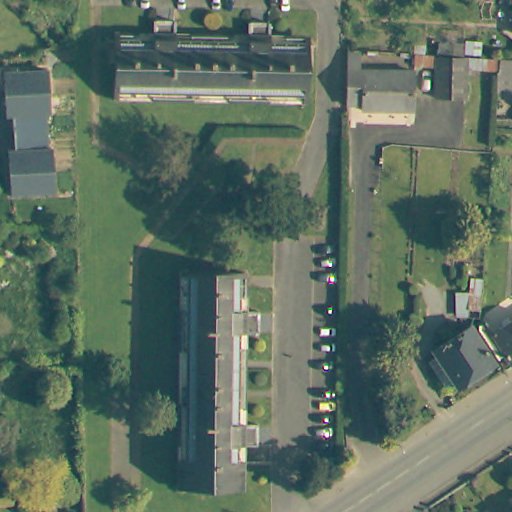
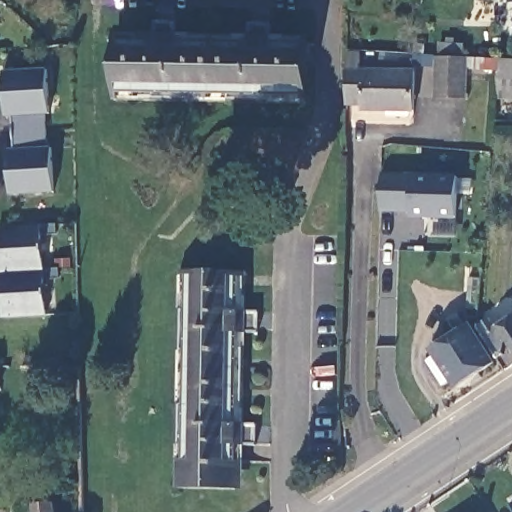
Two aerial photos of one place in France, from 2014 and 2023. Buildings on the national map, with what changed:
unchanged [(509,0),(512,0),(512,3),(509,3),(509,0)]
unchanged [(249,15),(271,15),(270,37),(314,37),(314,42),(307,42),(306,99),(303,99),(302,88),(119,86),(119,94),(115,94),(116,37),(108,37),(108,32),(153,33),(153,13),(176,13),(176,35),(249,35),(249,15)]
unchanged [(382,110),(361,110),(362,102),(346,103),(346,50),(359,51),(359,67),(384,68),(382,110)]
unchanged [(468,57),(467,97),(436,96),(438,56),(468,57)]
unchanged [(494,91),(496,72),(497,57),(512,58),(512,92),(503,91),(494,91)]
unchanged [(414,110),(382,110),(384,68),(416,69),(414,110)]
unchanged [(0,118),(0,73),(36,71),(38,116),(34,116),(35,134),(1,135),(1,118),(0,118)]
unchanged [(35,134),(35,151),(39,151),(41,196),(0,198),(0,153),(2,153),(1,135),(35,134)]
new [(456,219),(411,217),(411,212),(381,210),(382,172),(412,173),(458,174),(456,219)]
new [(3,319),(0,261),(0,228),(41,226),(46,317),(3,319)]
unchanged [(241,277),(233,277),(233,312),(252,312),(251,336),(232,336),(231,428),(250,428),(249,450),(231,450),(230,492),(225,492),(225,484),(180,484),(180,492),(174,492),(181,276),(173,276),(173,271),(241,272),(241,277)]
unchanged [(477,315),(464,315),(466,289),(479,288),(477,315)]
unchanged [(481,335),(476,326),(476,322),(488,314),(495,324),(512,313),(512,361),(509,362),(506,364),(500,355),(496,357),(481,335)]
unchanged [(492,359),(464,377),(454,384),(449,378),(441,383),(426,359),(430,356),(435,353),(433,350),(432,348),(430,346),(467,321),(492,359)]
unchanged [(46,498),(47,505),(48,512),(26,512),(26,507),(40,506),(39,498),(46,498)]
unchanged [(512,501),(512,509),(508,503),(512,501)]

